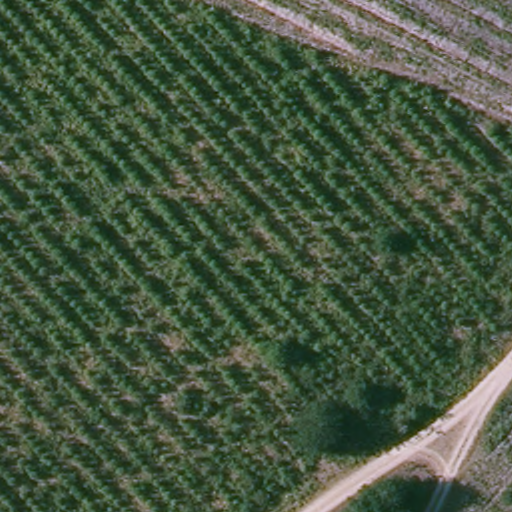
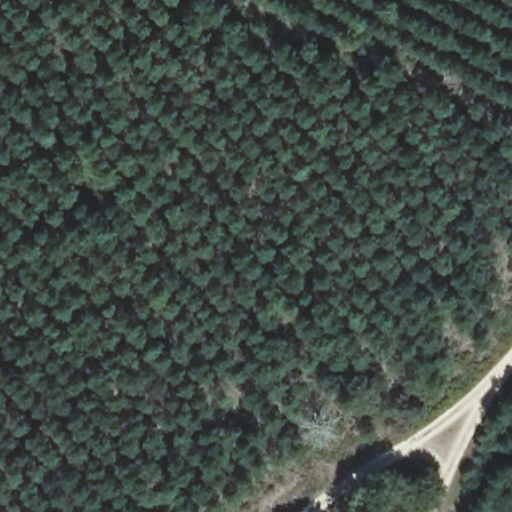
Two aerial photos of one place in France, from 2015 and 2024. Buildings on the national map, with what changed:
[]

